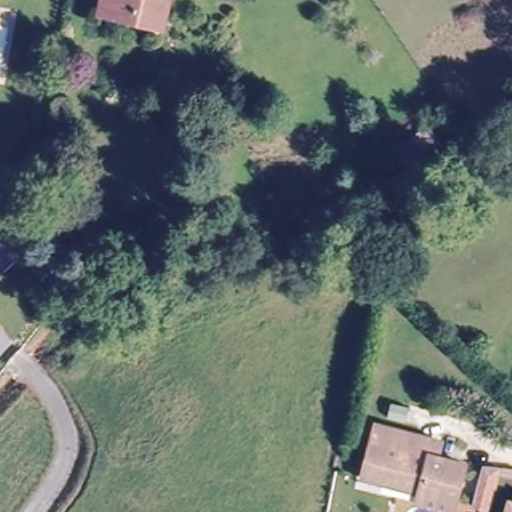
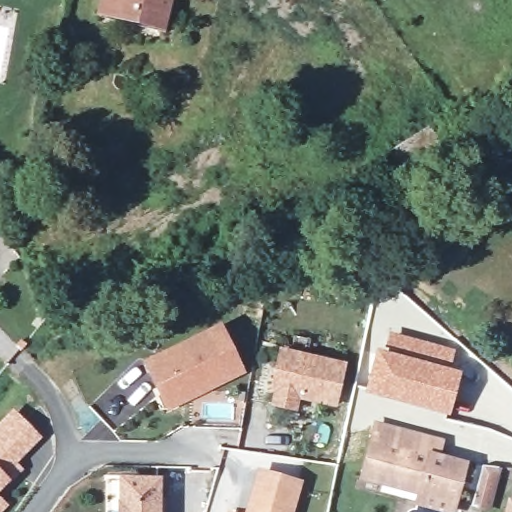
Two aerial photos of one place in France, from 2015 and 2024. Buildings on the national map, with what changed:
unchanged [(173,0),(162,34),(94,13),(97,0),(173,0)]
unchanged [(420,130),(380,156),(368,139),(409,115),(420,130)]
new [(245,373),(166,411),(140,362),(220,323),(245,373)]
new [(375,348),(383,350),(390,331),(455,349),(450,367),(461,371),(449,415),(365,393),(375,348)]
new [(346,363),(337,409),(299,402),(296,413),(268,406),(270,394),(267,394),(277,347),(346,363)]
new [(12,409),(41,437),(16,465),(22,470),(0,491),(0,422),(12,409)]
unchanged [(412,508),(415,493),(358,480),(370,426),(412,437),(435,442),(431,461),(465,469),(456,503),(454,512),(429,512),(412,508)]
unchanged [(482,507),(492,467),(507,468),(497,512),(495,512),(487,509),(482,507)]
new [(302,480),(292,512),(244,512),(256,468),(302,480)]
new [(161,477),(161,512),(116,512),(117,476),(161,477)]
new [(9,505),(2,512),(0,512),(0,496),(9,505)]
unchanged [(507,504),(512,505),(512,512),(505,512),(507,504)]
new [(226,511),(228,512),(226,512),(226,511)]

